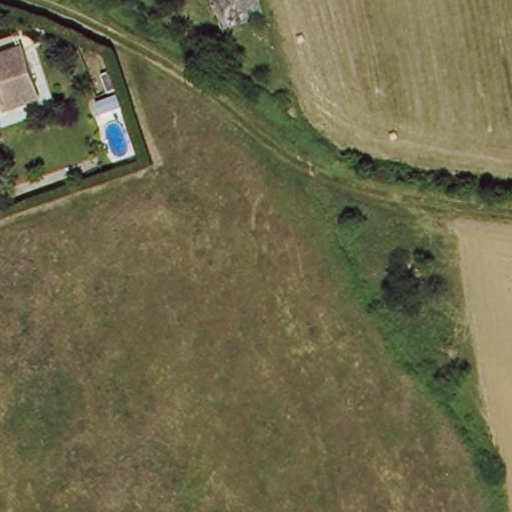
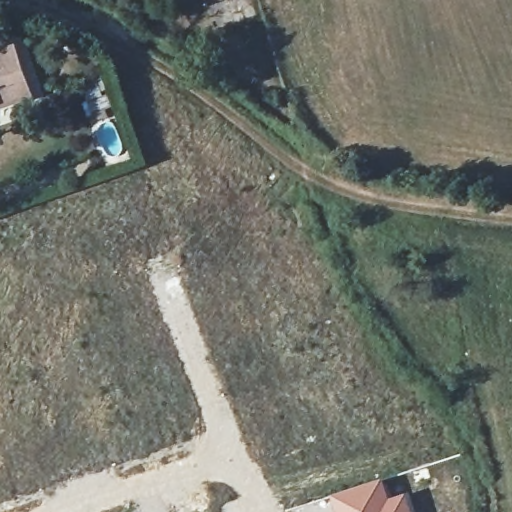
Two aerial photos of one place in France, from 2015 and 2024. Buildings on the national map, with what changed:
unchanged [(207,4),(205,0),(218,0),(207,4)]
unchanged [(3,111),(0,112),(0,61),(21,54),(35,94),(38,104),(5,115),(3,111)]
new [(383,477),(390,497),(408,492),(414,512),(334,512),(328,494),(383,477)]

